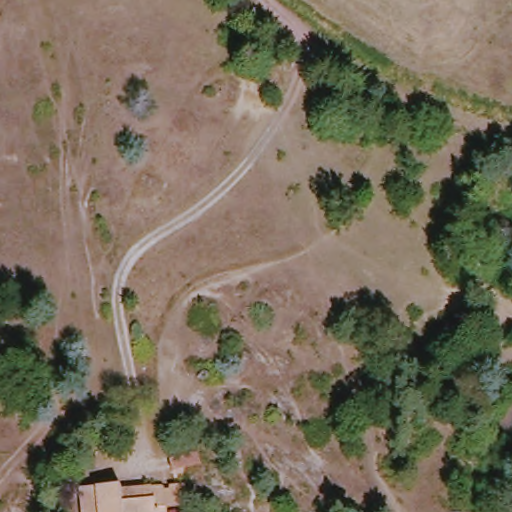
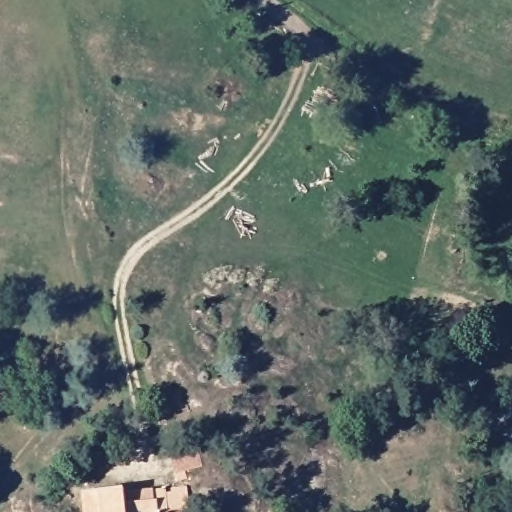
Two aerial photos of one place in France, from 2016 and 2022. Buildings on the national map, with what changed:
unchanged [(200,468),(170,475),(165,451),(195,446),(200,468)]
unchanged [(155,512),(81,512),(78,495),(117,490),(117,496),(162,490),(165,510),(155,512)]

